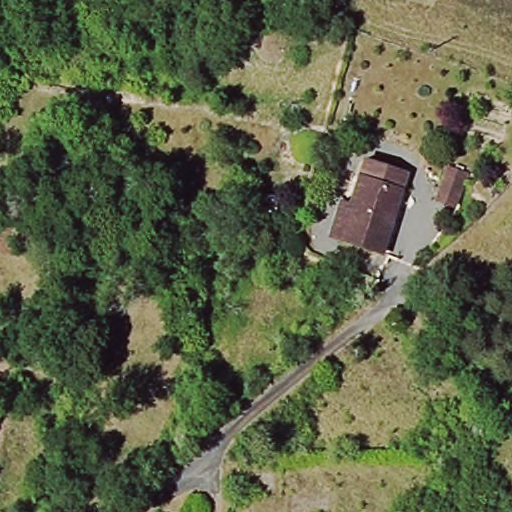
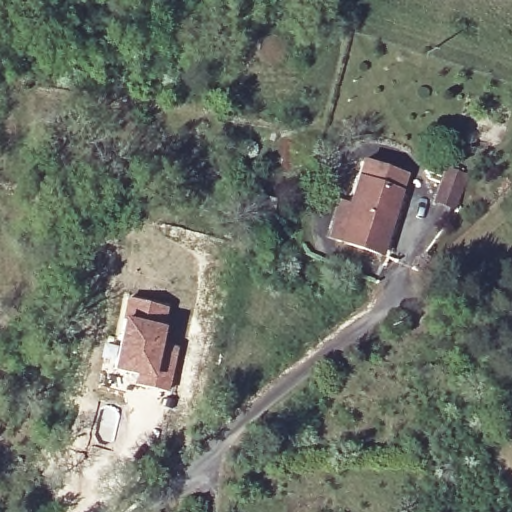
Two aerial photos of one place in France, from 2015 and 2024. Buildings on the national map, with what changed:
unchanged [(270,66),(262,64),(257,61),(253,57),(251,51),(235,50),(236,34),(253,36),(257,31),(261,28),(267,26),(275,26),(280,29),(284,31),(288,36),(290,44),(291,51),(287,58),(282,63),(276,65),(270,66)]
unchanged [(465,174),(454,210),(433,204),(443,169),(465,174)]
unchanged [(349,213),(357,184),(361,170),(405,182),(402,195),(383,259),(338,248),(326,244),(336,209),(349,213)]
new [(125,296),(170,306),(163,338),(182,343),(171,392),(132,384),(133,377),(107,373),(125,296)]

